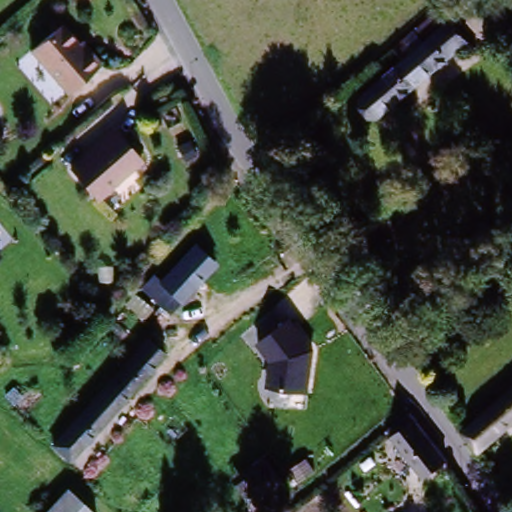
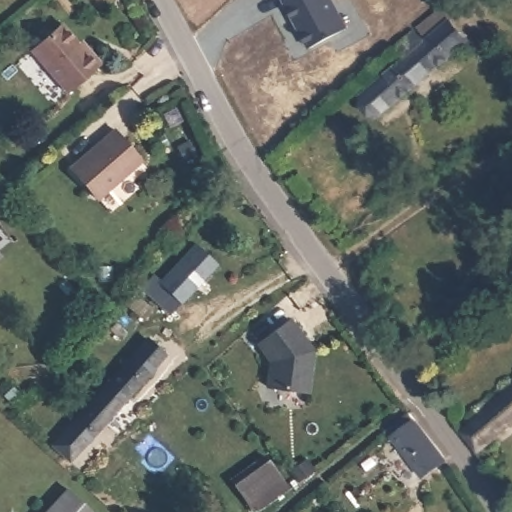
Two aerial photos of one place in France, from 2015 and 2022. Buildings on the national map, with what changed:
new [(306,51),(297,33),(299,32),(294,24),(293,25),(280,0),(327,0),(344,31),(306,51)]
unchanged [(444,8),(479,47),(463,61),(443,32),(403,61),(393,46),(444,8)]
unchanged [(65,88),(30,47),(59,20),(74,38),(78,34),(86,43),(98,56),(65,88)]
unchanged [(463,61),(379,121),(353,98),(443,32),(463,61)]
unchanged [(112,129),(138,160),(94,201),(68,171),(112,129)]
unchanged [(154,277),(158,281),(190,245),(216,268),(173,315),(143,290),(154,277)]
unchanged [(1,249),(0,250),(0,248),(1,249)]
unchanged [(270,368),(256,347),(288,322),(314,350),(309,396),(265,391),(270,368)]
unchanged [(149,337),(169,355),(69,462),(50,444),(149,337)]
unchanged [(512,428),(484,450),(469,432),(512,397),(512,428)]
unchanged [(439,475),(421,488),(389,447),(409,433),(439,475)]
unchanged [(303,512),(248,512),(228,483),(271,455),(303,512)]
unchanged [(73,488),(95,512),(49,512),(73,488)]

